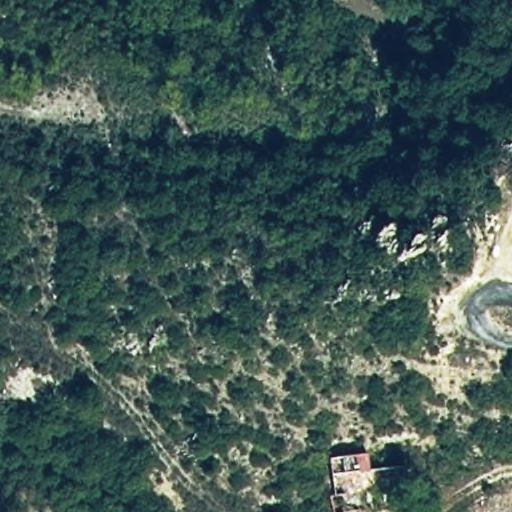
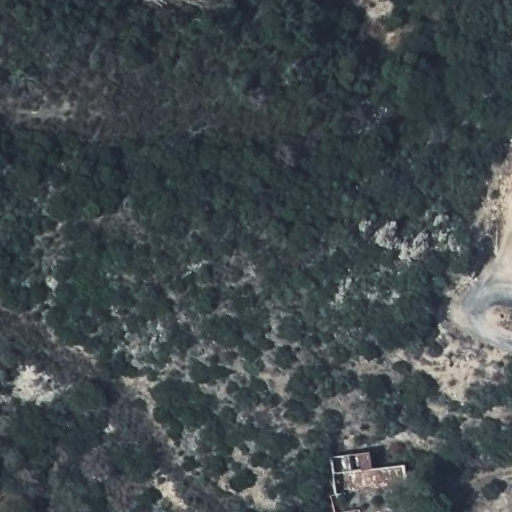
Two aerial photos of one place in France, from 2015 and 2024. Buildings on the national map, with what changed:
unchanged [(329,458),(367,456),(368,478),(329,480),(329,458)]

